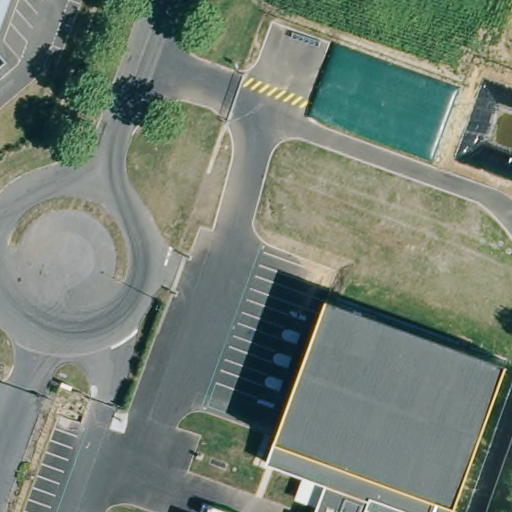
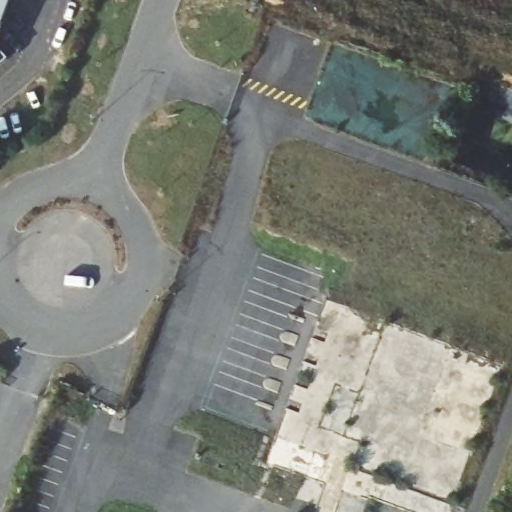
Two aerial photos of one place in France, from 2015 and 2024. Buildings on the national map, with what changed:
unchanged [(0,0),(10,0),(0,29),(0,0)]
unchanged [(0,63),(0,50),(6,58),(0,63)]
demolished [(321,505),(301,498),(309,477),(270,463),(270,461),(330,297),(510,362),(456,512),(412,512),(372,497),(372,498),(366,512),(319,512),(321,505)]

